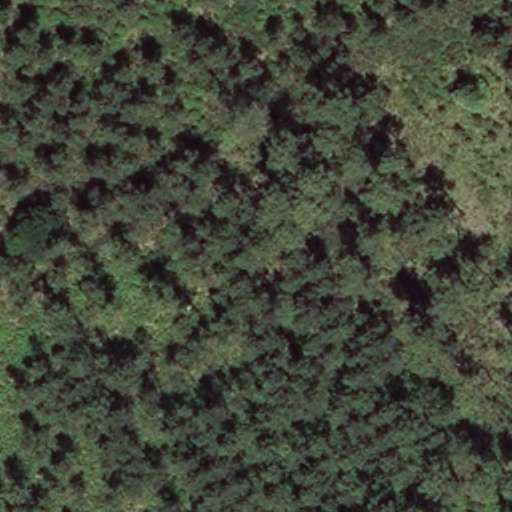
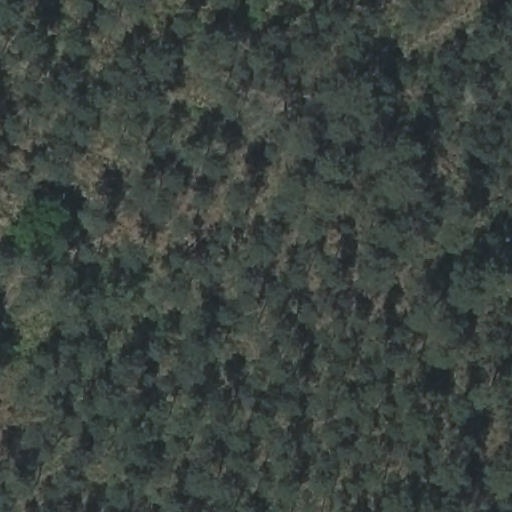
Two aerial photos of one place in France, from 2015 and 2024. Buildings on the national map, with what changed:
[]

